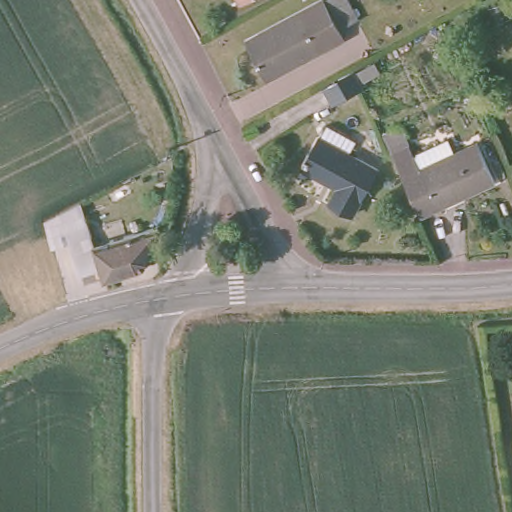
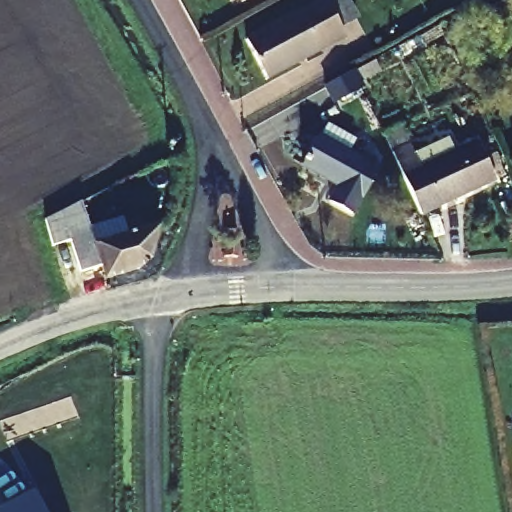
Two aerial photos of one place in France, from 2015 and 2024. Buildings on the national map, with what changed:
unchanged [(244,0),(247,0),(245,1),(244,0)]
unchanged [(324,0),(338,28),(314,40),(317,47),(263,78),(245,40),(323,0),(324,0)]
unchanged [(357,65),(364,81),(333,97),(326,83),(357,65)]
unchanged [(345,137),(339,148),(380,171),(355,217),(330,202),(338,187),(305,167),(325,126),(345,137)]
unchanged [(410,152),(413,159),(447,143),(455,157),(478,147),(496,187),(422,221),(395,160),(410,152)]
unchanged [(51,218),(67,208),(133,176),(138,190),(91,211),(96,236),(102,261),(86,268),(76,236),(56,243),(51,218)]
unchanged [(105,273),(102,261),(96,236),(157,219),(151,254),(145,261),(105,273)]
unchanged [(236,250),(226,251),(226,239),(235,238),(236,250)]
unchanged [(510,440),(512,440),(512,453),(510,440)]
new [(0,508),(32,491),(43,512),(0,512),(0,508)]

